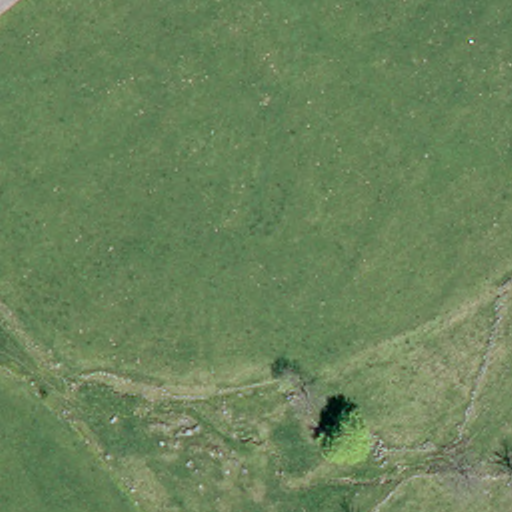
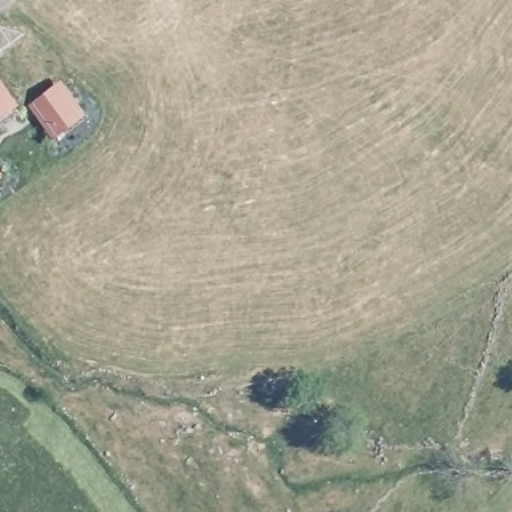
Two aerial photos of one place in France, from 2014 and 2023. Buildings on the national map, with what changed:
new [(20,102),(0,116),(0,75),(20,102)]
new [(29,103),(62,78),(87,111),(54,136),(29,103)]
new [(3,174),(0,176),(0,170),(3,174)]

